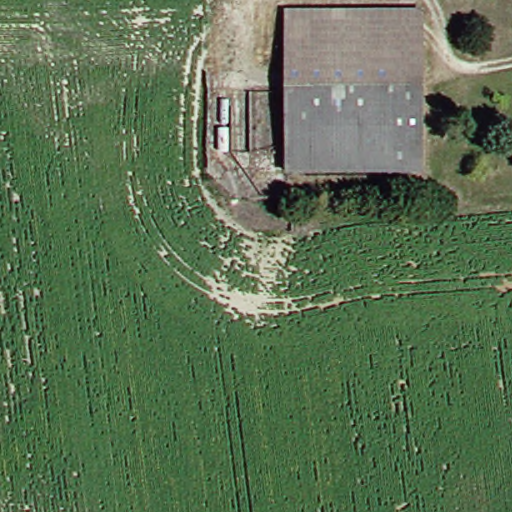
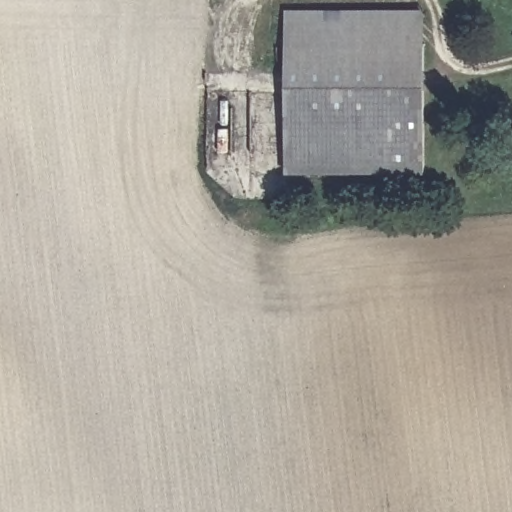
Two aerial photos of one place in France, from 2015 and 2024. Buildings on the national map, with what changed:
unchanged [(276,49),(276,21),(416,21),(416,47),(276,49)]
unchanged [(413,176),(385,177),(384,136),(277,136),(276,49),(416,47),(413,176)]
unchanged [(278,175),(277,136),(384,136),(385,177),(278,175)]

